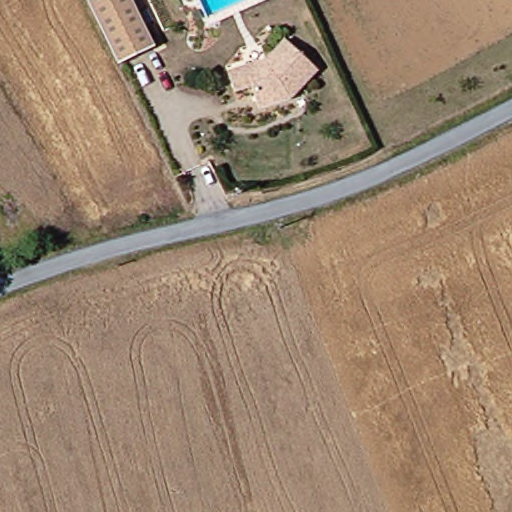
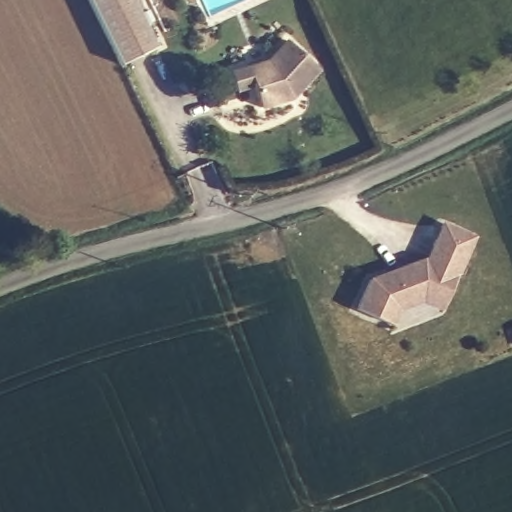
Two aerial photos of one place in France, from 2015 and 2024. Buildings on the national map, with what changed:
unchanged [(155,49),(119,67),(85,0),(131,0),(155,49)]
unchanged [(227,78),(244,72),(263,66),(282,43),(315,69),(293,100),(259,112),(250,90),(232,96),(227,78)]
new [(474,235),(439,311),(421,302),(399,310),(393,325),(354,308),(367,277),(424,258),(441,222),(474,235)]

